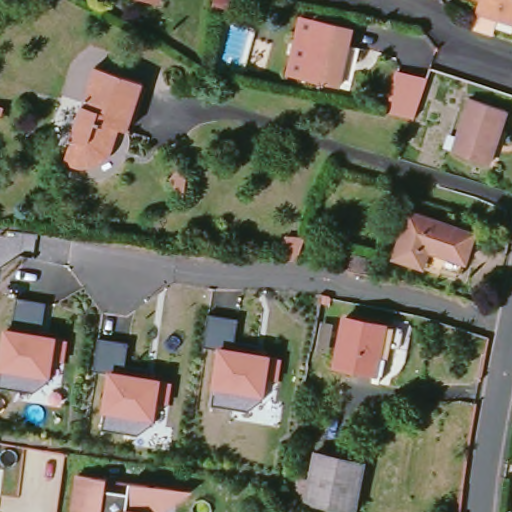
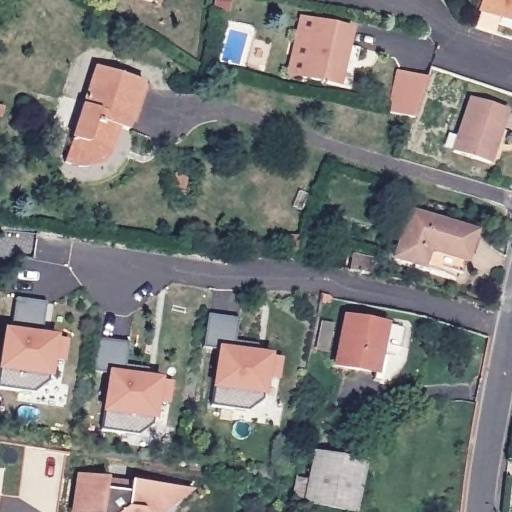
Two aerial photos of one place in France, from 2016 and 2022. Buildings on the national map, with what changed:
unchanged [(154,0),(154,1),(150,0),(154,0)]
unchanged [(487,0),(512,0),(512,39),(477,29),(487,0)]
unchanged [(292,61),(297,38),(301,16),(315,19),(354,27),(354,28),(342,86),(304,78),(289,75),(292,61)]
unchanged [(81,168),(80,168),(78,167),(76,167),(72,166),(62,163),(92,67),(140,82),(125,131),(117,128),(110,147),(109,150),(107,153),(106,155),(105,157),(104,159),(102,160),(98,163),(97,164),(95,165),(94,166),(92,166),(90,166),(89,167),(87,167),(85,167),(84,167),(82,168),(81,168)]
unchanged [(427,78),(415,117),(380,111),(393,70),(427,78)]
unchanged [(456,152),(466,121),(472,104),(474,98),(508,110),(507,117),(501,134),(492,163),(456,152)]
unchanged [(187,187),(185,196),(171,181),(179,172),(188,179),(187,187)]
unchanged [(443,262),(441,266),(397,252),(411,207),(476,228),(462,268),(443,262)]
unchanged [(351,269),(354,256),(370,259),(367,273),(351,269)]
unchanged [(54,358),(51,375),(47,375),(47,382),(34,391),(0,386),(0,347),(3,324),(12,325),(17,296),(45,302),(42,330),(56,333),(55,336),(68,337),(65,361),(54,358)]
unchanged [(234,347),(270,352),(282,359),(279,380),(265,378),(262,394),(260,398),(248,408),(210,402),(210,385),(215,349),(202,347),(205,313),(238,317),(234,347)]
unchanged [(337,365),(345,318),(386,326),(378,372),(337,365)]
unchanged [(124,369),(161,376),(160,381),(172,382),(169,403),(155,403),(153,419),(150,423),(137,432),(100,426),(102,410),(105,374),(92,371),(97,338),(127,341),(124,369)]
unchanged [(299,416),(310,419),(309,433),(297,430),(299,416)]
unchanged [(307,503),(307,499),(295,496),(299,479),(310,481),(317,454),(365,462),(355,512),(307,503)]
unchanged [(134,484),(152,487),(155,491),(159,488),(177,491),(183,501),(168,512),(76,512),(82,476),(110,480),(134,484)]

